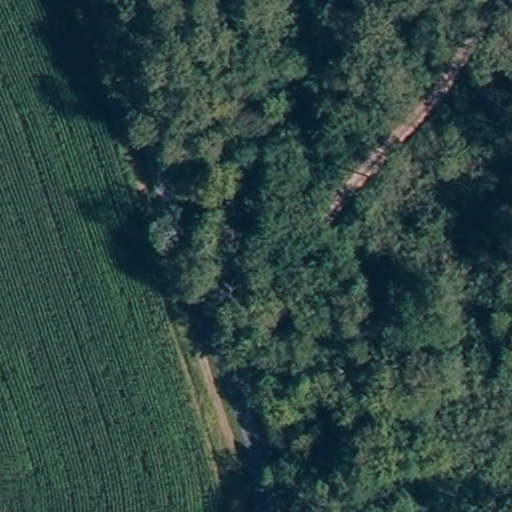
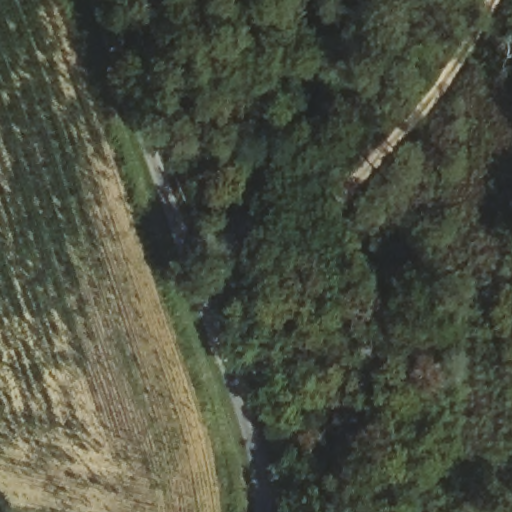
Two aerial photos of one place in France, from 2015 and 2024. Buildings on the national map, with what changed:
[]

